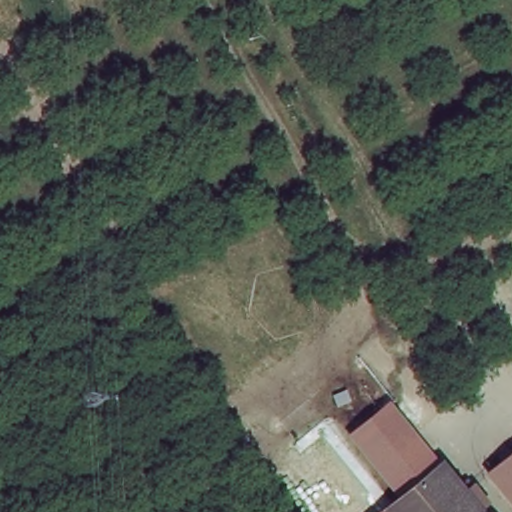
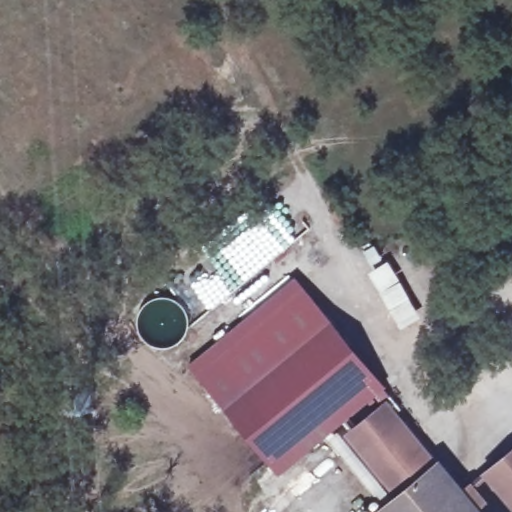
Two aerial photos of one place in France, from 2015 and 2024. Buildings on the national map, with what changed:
new [(421,318),(400,329),(368,272),(389,261),(421,318)]
new [(188,366),(295,279),(384,388),(279,475),(188,366)]
new [(343,434),(386,400),(443,472),(421,489),(401,506),(343,434)]
new [(512,509),(483,474),(512,449),(512,509)]
unchanged [(394,512),(421,489),(443,472),(466,500),(477,512),(394,512)]

